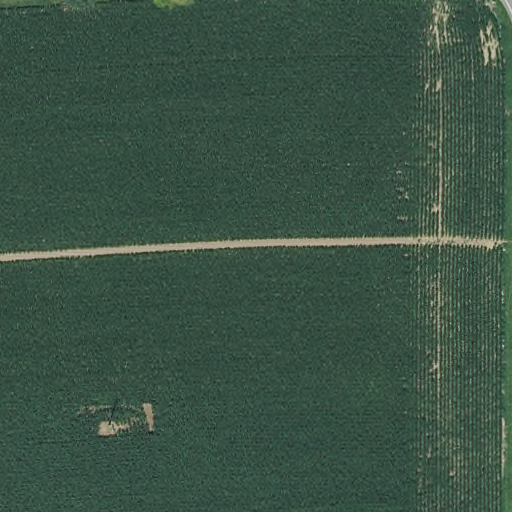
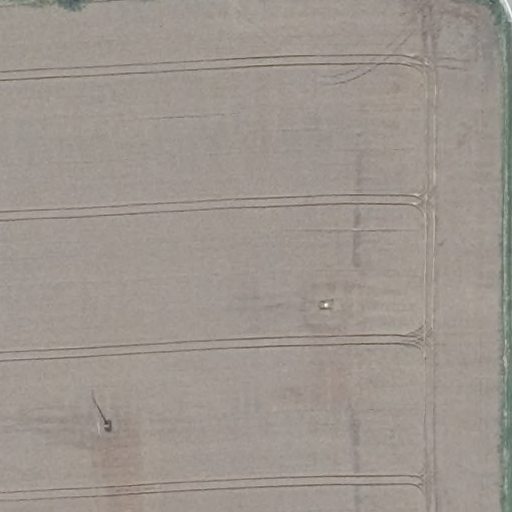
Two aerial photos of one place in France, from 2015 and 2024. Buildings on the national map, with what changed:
[]

